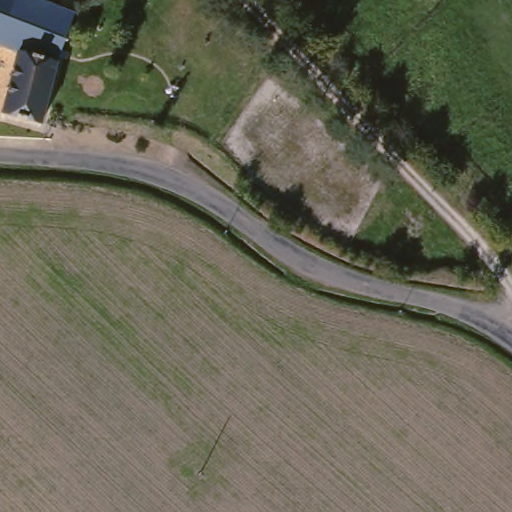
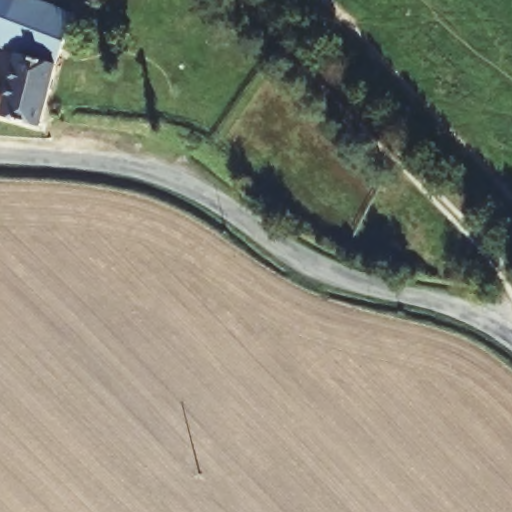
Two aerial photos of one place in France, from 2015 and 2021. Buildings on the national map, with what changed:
unchanged [(62,64),(22,49),(0,40),(0,0),(48,0),(78,13),(62,64)]
unchanged [(61,66),(45,126),(6,114),(22,49),(62,64),(61,66)]

